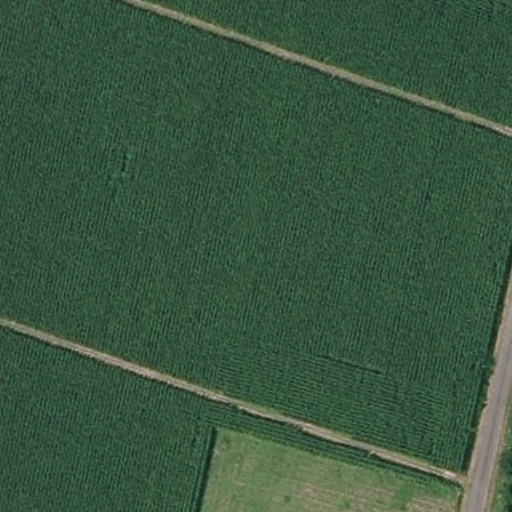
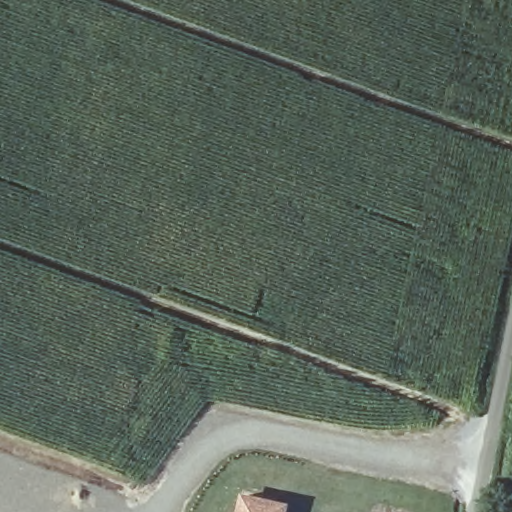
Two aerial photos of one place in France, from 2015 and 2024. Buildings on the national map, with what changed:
new [(245,486),(275,493),(289,497),(285,512),(239,512),(245,486)]

